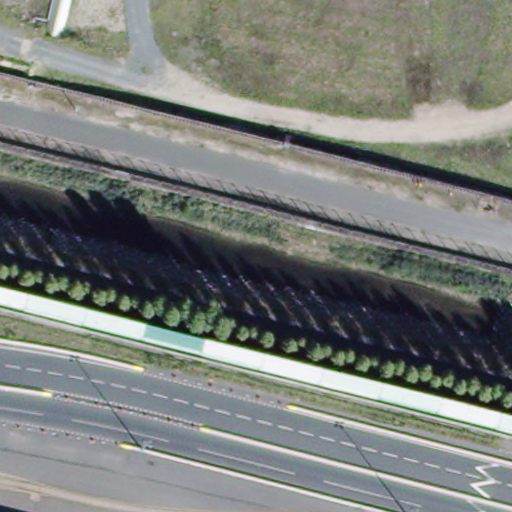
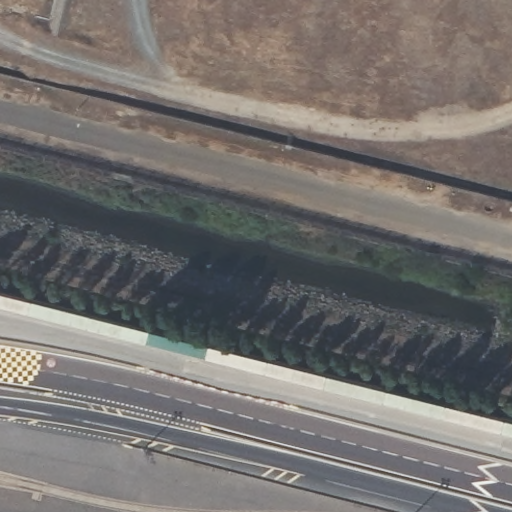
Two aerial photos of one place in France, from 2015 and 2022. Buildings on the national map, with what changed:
[]

